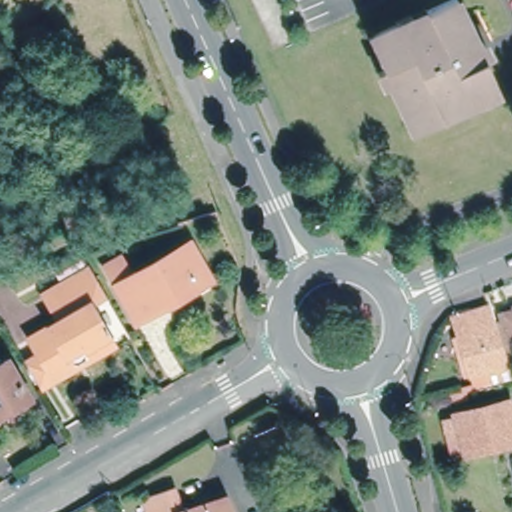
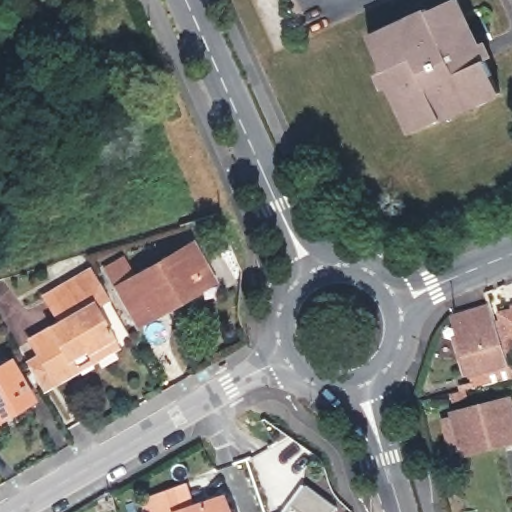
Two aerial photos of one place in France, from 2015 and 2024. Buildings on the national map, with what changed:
unchanged [(441,120),(412,134),(369,38),(397,25),(396,20),(413,12),(416,15),(451,0),(461,0),(500,92),(473,104),(476,109),(443,123),(441,120)]
unchanged [(109,280),(122,273),(134,289),(176,264),(184,260),(202,289),(193,295),(139,329),(109,280)]
unchanged [(40,352),(29,331),(58,314),(44,290),(87,265),(102,290),(89,299),(109,334),(114,339),(75,364),(55,374),(39,384),(25,361),(40,352)]
unchanged [(512,351),(505,354),(495,319),(495,314),(512,308),(512,351)]
unchanged [(452,332),(495,319),(505,354),(506,362),(511,376),(465,389),(461,374),(452,332)]
unchanged [(5,359),(26,394),(0,408),(0,362),(5,359)]
unchanged [(457,423),(456,413),(511,397),(512,402),(512,440),(502,443),(501,438),(481,444),(483,450),(466,454),(464,448),(448,451),(442,426),(457,423)]
new [(336,507),(331,512),(307,512),(293,502),(306,484),(336,507)]
unchanged [(233,512),(148,512),(144,500),(176,489),(182,512),(229,499),(233,512)]

